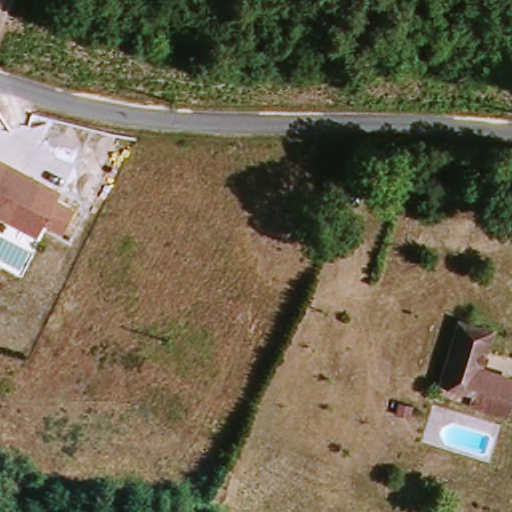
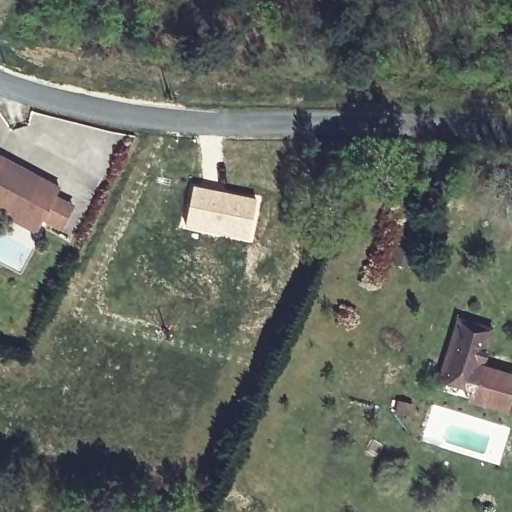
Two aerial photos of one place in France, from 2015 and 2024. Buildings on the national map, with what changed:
unchanged [(0,213),(0,153),(62,185),(58,194),(77,205),(64,231),(43,221),(38,232),(0,213)]
new [(192,184),(258,197),(250,242),(182,227),(192,184)]
unchanged [(444,386),(472,312),(497,322),(482,370),(472,395),(444,386)]
unchanged [(511,380),(499,413),(469,403),(472,395),(482,370),(511,380)]

